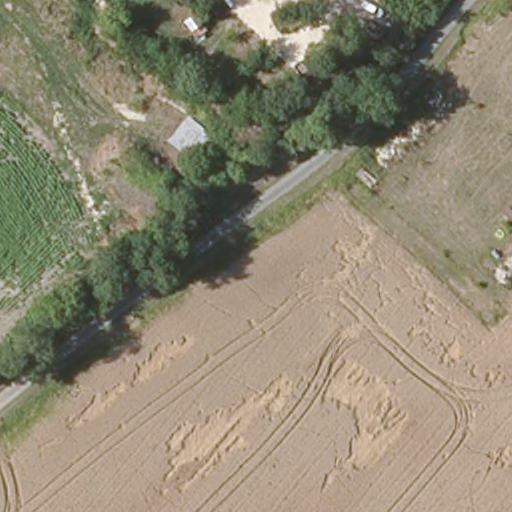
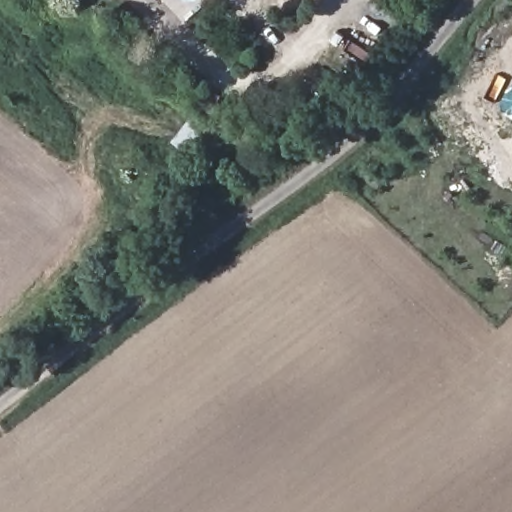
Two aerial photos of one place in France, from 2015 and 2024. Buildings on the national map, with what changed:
unchanged [(170,144),(190,117),(215,135),(195,160),(170,144)]

